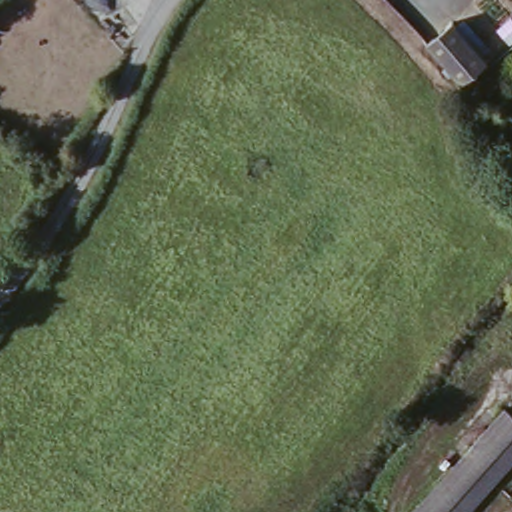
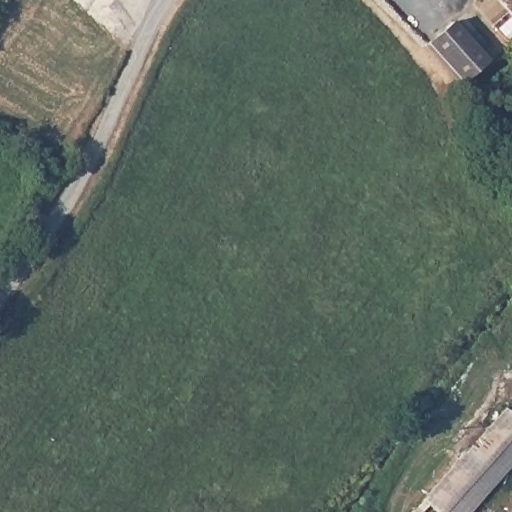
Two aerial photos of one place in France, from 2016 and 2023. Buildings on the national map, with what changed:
unchanged [(430,44),(455,21),(490,58),(465,82),(430,44)]
unchanged [(512,410),(512,461),(471,512),(415,512),(503,403),(512,410)]

